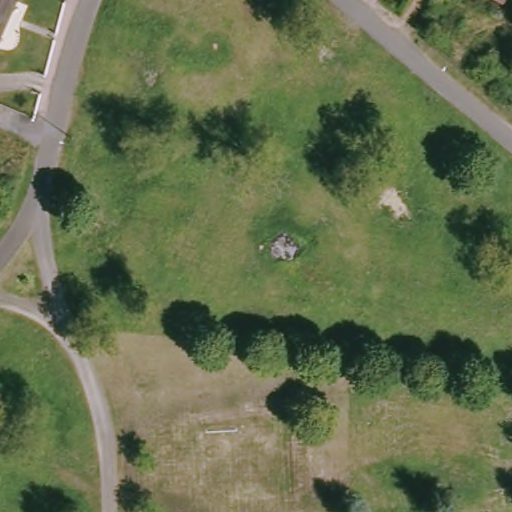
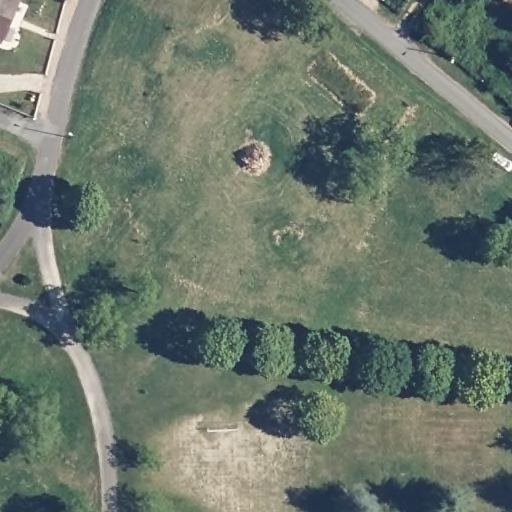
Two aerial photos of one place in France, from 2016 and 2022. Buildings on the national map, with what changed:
unchanged [(17,0),(6,38),(0,37),(0,0),(17,0)]
unchanged [(487,0),(508,0),(504,7),(487,0)]
unchanged [(20,259),(28,266),(22,274),(14,268),(20,259)]

